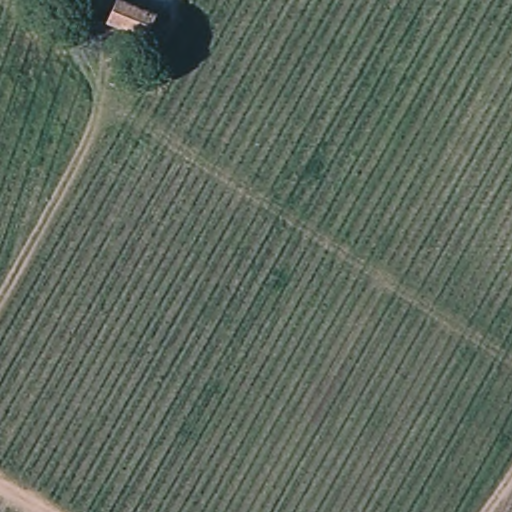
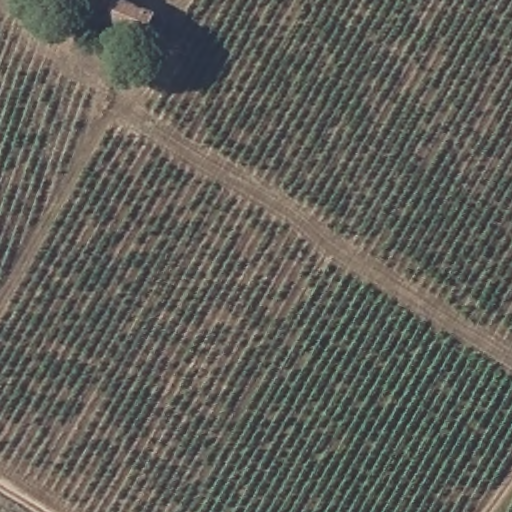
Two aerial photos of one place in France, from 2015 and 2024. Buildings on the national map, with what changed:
unchanged [(155,19),(145,42),(108,26),(117,3),(155,19)]

